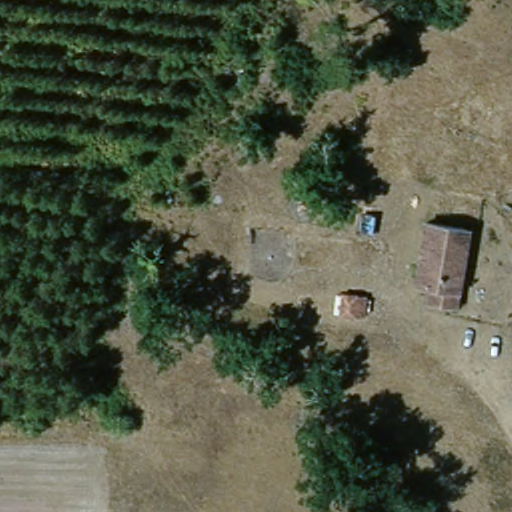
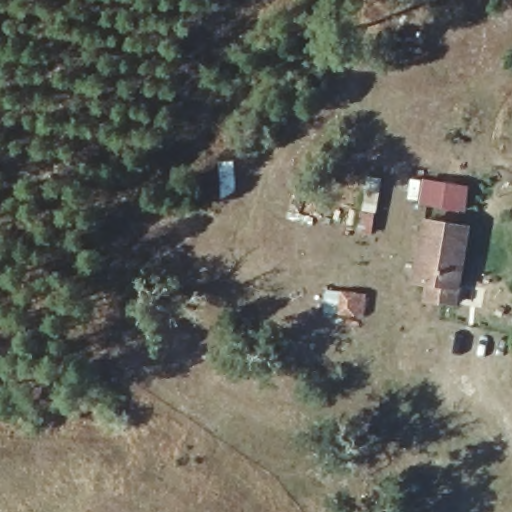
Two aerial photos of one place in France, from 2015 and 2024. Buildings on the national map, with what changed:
new [(468,186),(464,210),(419,202),(423,179),(468,186)]
unchanged [(430,297),(433,281),(419,278),(432,217),(476,227),(461,288),(459,303),(430,297)]

